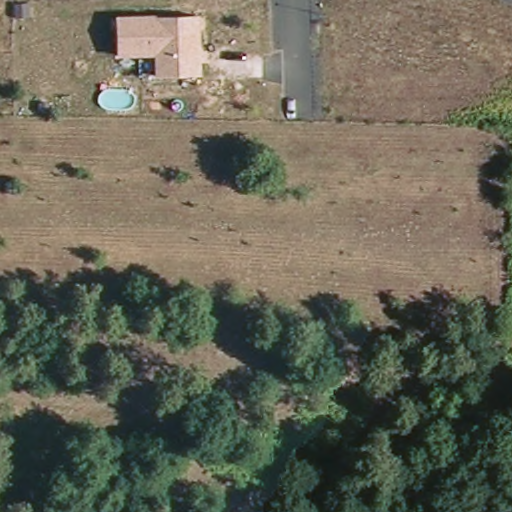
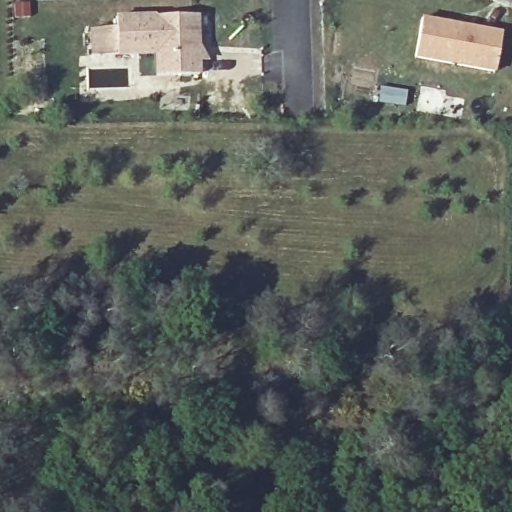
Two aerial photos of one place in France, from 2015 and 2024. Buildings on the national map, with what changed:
unchanged [(200,14),(200,77),(154,76),(154,55),(116,56),(114,16),(200,14)]
new [(453,24),(465,26),(504,33),(497,72),(417,58),(424,19),(453,24)]
new [(116,54),(91,56),(90,30),(115,27),(116,54)]

